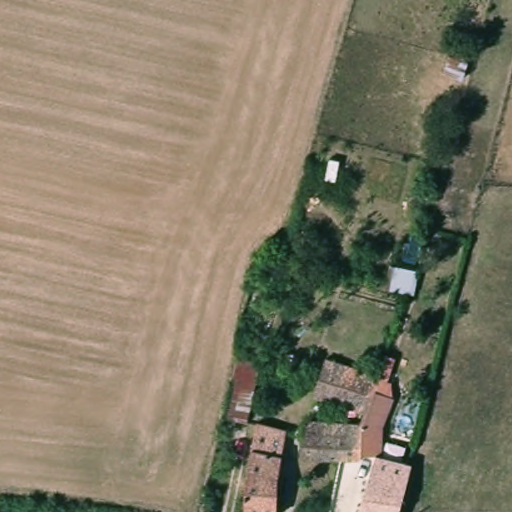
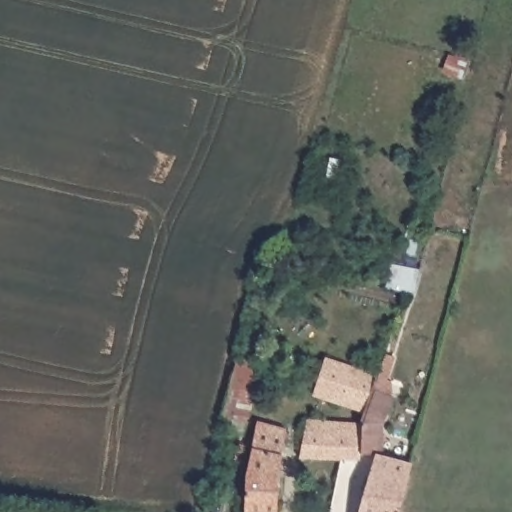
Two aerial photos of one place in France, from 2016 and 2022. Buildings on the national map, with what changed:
unchanged [(248,425),(224,420),(225,412),(237,359),(263,364),(249,419),(248,425)]
unchanged [(314,391),(325,359),(377,375),(374,385),(373,388),(366,409),(314,391)]
unchanged [(377,452),(362,451),(362,427),(362,422),(366,409),(373,388),(392,394),(383,420),(382,453),(412,461),(399,512),(359,512),(366,484),(377,452)]
unchanged [(306,418),(320,419),(362,422),(362,427),(362,451),(361,459),(342,458),(300,456),(306,418)]
unchanged [(284,432),(283,442),(278,477),(278,512),(246,512),(248,475),(255,431),(257,427),(284,432)]

